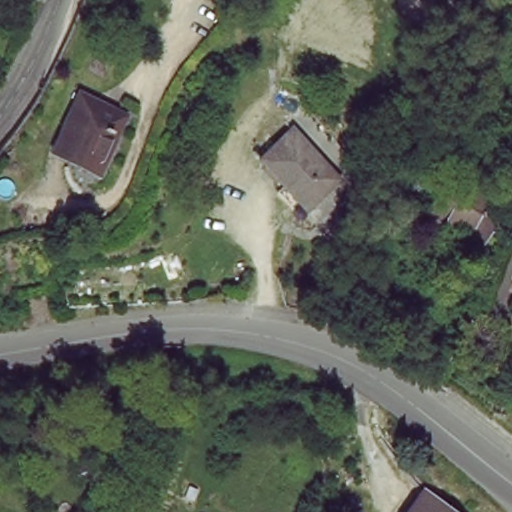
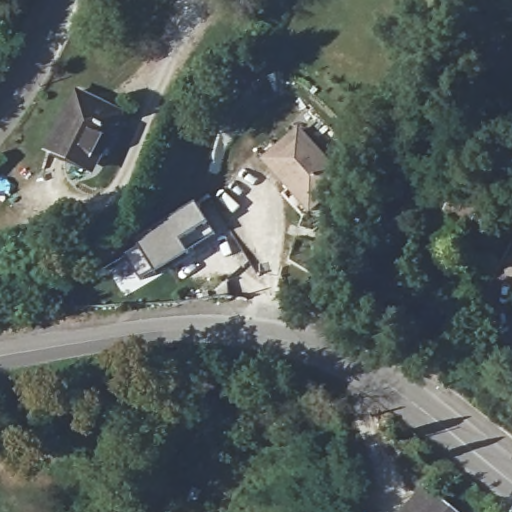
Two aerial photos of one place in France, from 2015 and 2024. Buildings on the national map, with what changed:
unchanged [(122,114),(112,135),(105,132),(90,164),(72,155),(69,161),(48,150),(77,91),(122,114)]
unchanged [(302,215),(283,194),(290,187),(265,159),(298,130),(342,179),(302,215)]
unchanged [(427,219),(434,207),(455,167),(508,194),(487,236),(481,248),(427,219)]
new [(135,246),(132,239),(194,201),(215,234),(137,280),(122,255),(135,246)]
unchanged [(100,478),(81,473),(87,454),(106,459),(100,478)]
unchanged [(196,499),(189,496),(193,487),(200,490),(196,499)]
unchanged [(453,512),(410,512),(426,491),(453,512)]

